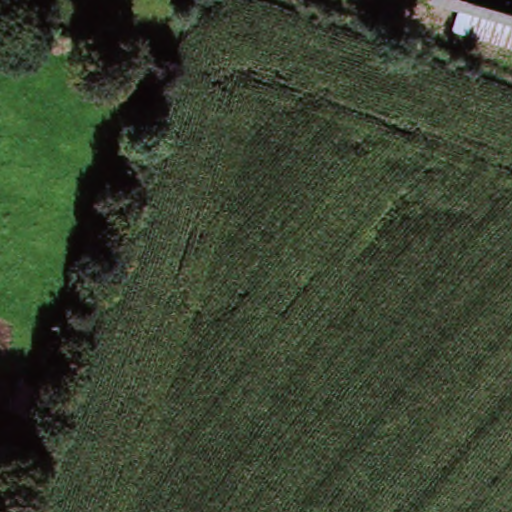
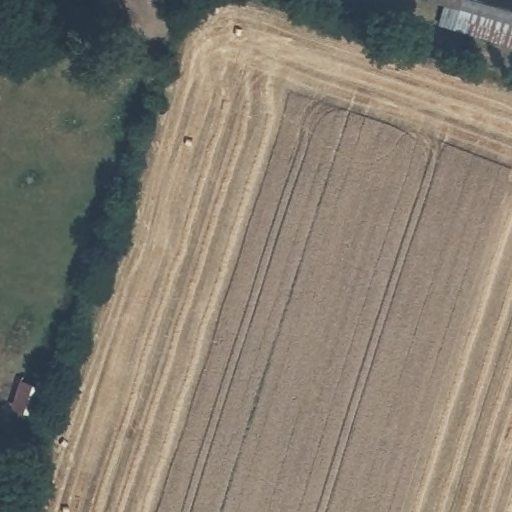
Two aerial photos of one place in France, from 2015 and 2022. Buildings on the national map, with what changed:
unchanged [(453,12),(428,2),(429,0),(512,0),(512,50),(448,30),(453,12)]

